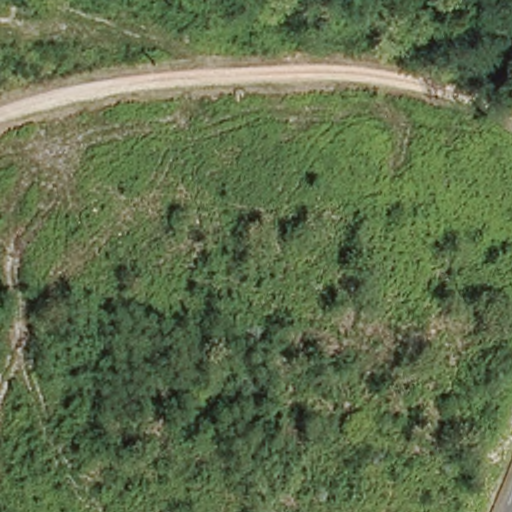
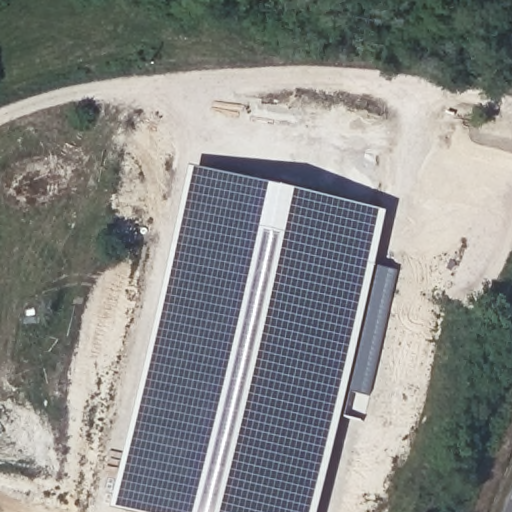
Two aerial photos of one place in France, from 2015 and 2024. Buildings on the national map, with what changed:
new [(135,512),(115,507),(195,166),(393,212),(324,512),(135,512)]

